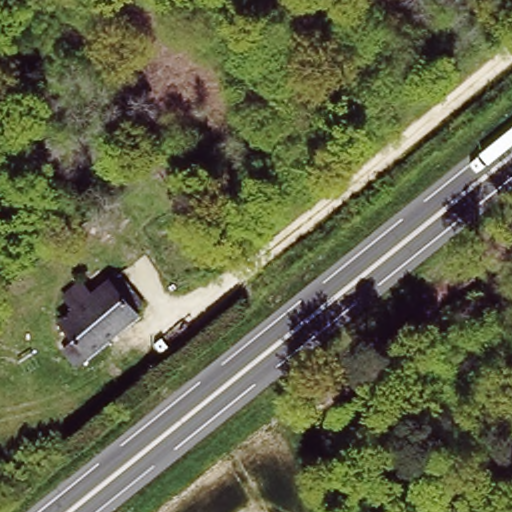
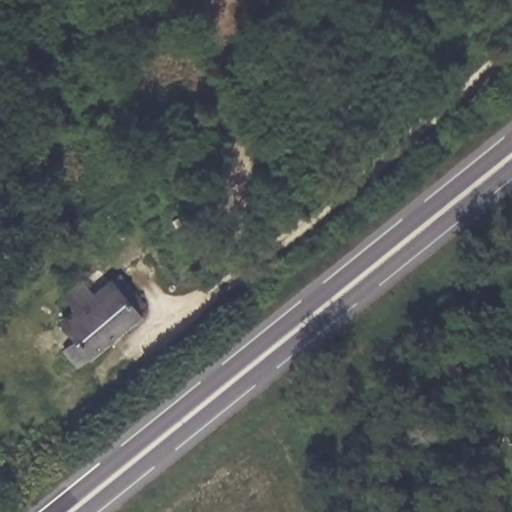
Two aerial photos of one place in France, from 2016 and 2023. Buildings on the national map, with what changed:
unchanged [(117,267),(138,293),(131,299),(138,306),(84,349),(57,314),(117,267)]

